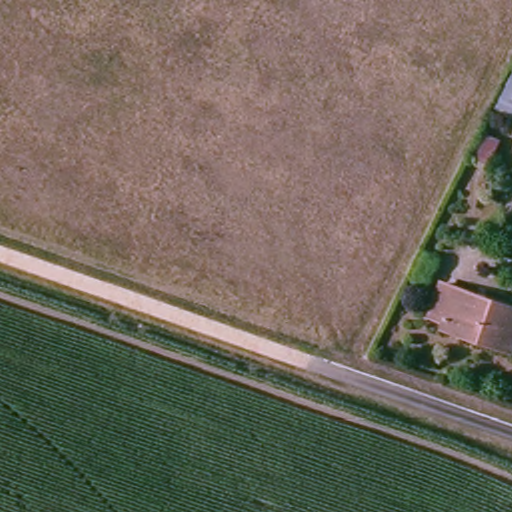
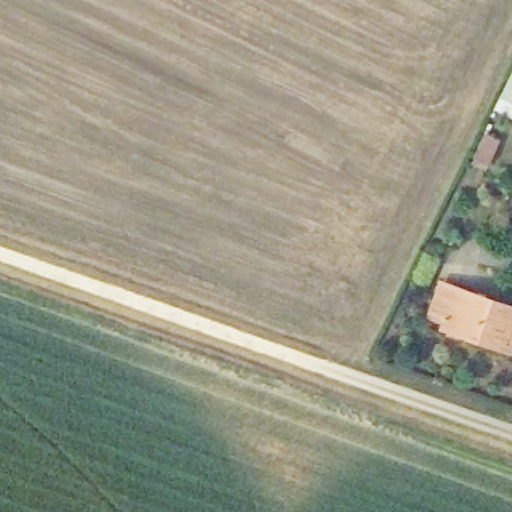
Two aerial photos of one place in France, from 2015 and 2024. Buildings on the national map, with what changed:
unchanged [(443,325),(445,315),(432,309),(443,278),(512,304),(512,338),(508,350),(443,325)]

